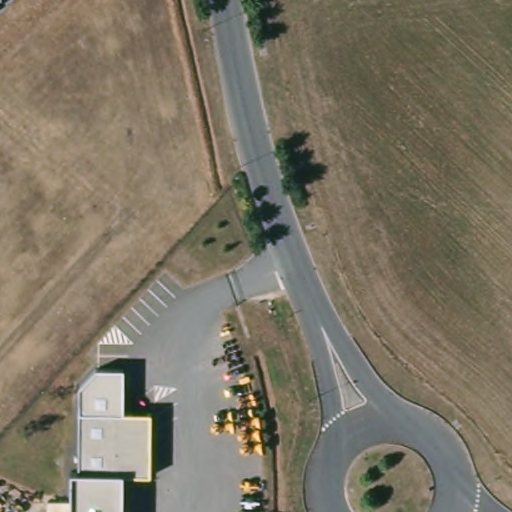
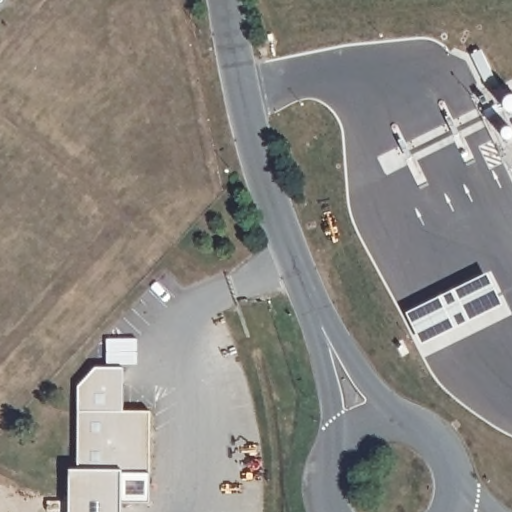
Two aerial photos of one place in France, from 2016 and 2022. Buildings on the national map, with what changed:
new [(482,51),(495,78),(485,82),(472,56),(482,51)]
new [(489,276),(505,306),(422,345),(407,314),(489,276)]
unchanged [(79,472),(80,412),(152,412),(152,474),(122,474),(122,512),(70,512),(71,472),(79,472)]

